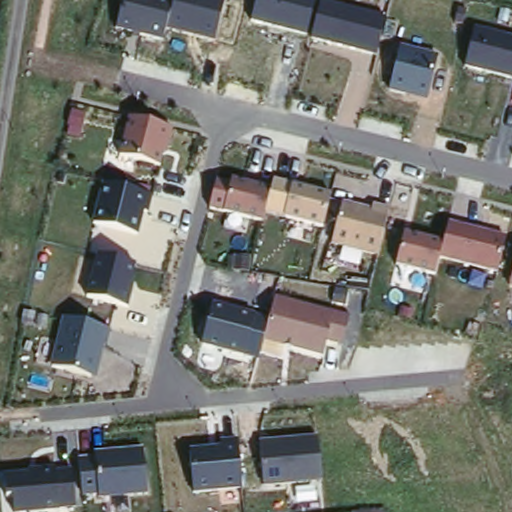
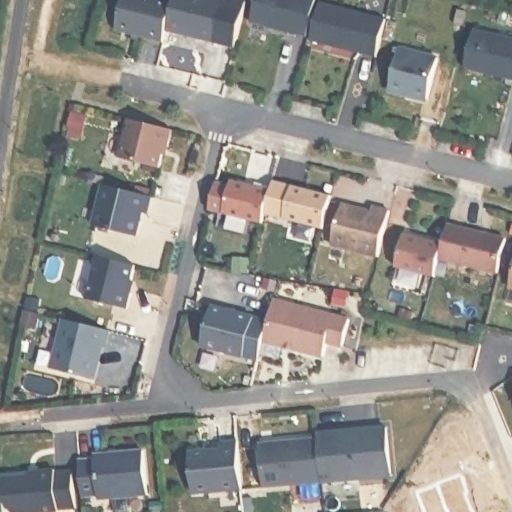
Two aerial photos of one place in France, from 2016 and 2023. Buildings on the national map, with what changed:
unchanged [(124,0),(225,0),(215,42),(166,29),(163,40),(118,28),(124,0)]
unchanged [(256,0),(315,0),(306,36),(251,20),(256,0)]
unchanged [(322,0),(386,18),(376,56),(312,39),(322,0)]
unchanged [(512,37),(512,79),(465,68),(477,29),(512,37)]
unchanged [(390,89),(401,48),(439,57),(428,101),(390,89)]
unchanged [(120,155),(129,118),(173,129),(166,154),(163,152),(160,166),(120,155)]
unchanged [(284,217),(265,210),(263,221),(223,212),(210,209),(217,179),(232,182),(233,178),(271,189),(273,178),(331,193),(322,228),(284,217)]
unchanged [(92,222),(102,184),(152,197),(149,213),(144,211),(139,235),(92,222)]
unchanged [(332,245),(344,203),(372,209),(373,204),(390,208),(377,257),(332,245)]
unchanged [(440,255),(434,274),(397,265),(405,232),(443,243),(449,223),(505,236),(497,273),(440,255)]
unchanged [(87,295),(97,255),(135,265),(132,278),(135,282),(129,308),(87,295)]
unchanged [(512,275),(512,286),(509,285),(512,275)]
unchanged [(212,303),(268,320),(275,296),(350,316),(343,346),(327,341),(322,357),(264,340),(259,360),(202,347),(212,303)]
unchanged [(51,366),(63,318),(111,330),(107,347),(104,346),(97,379),(51,366)]
new [(512,365),(512,371),(511,365),(512,365)]
new [(381,423),(386,475),(321,481),(317,437),(317,428),(381,423)]
unchanged [(260,442),(317,437),(321,481),(264,487),(260,442)]
unchanged [(191,451),(221,448),(221,442),(238,441),(242,489),(194,494),(191,451)]
unchanged [(80,458),(95,457),(95,452),(143,448),(147,494),(98,499),(98,494),(84,496),(80,458)]
unchanged [(13,496),(5,497),(3,475),(72,471),(76,508),(41,512),(14,512),(13,496)]

